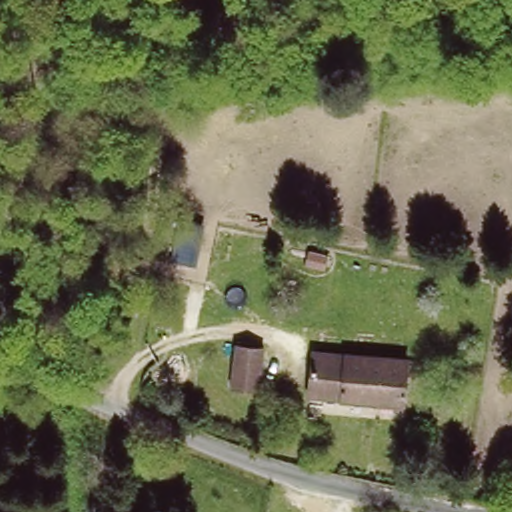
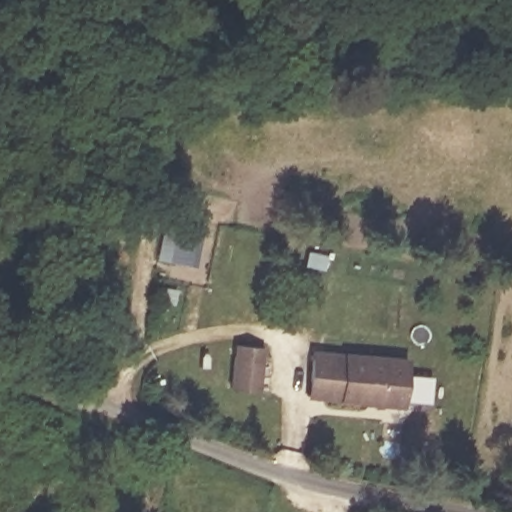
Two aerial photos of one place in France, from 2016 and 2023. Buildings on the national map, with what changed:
unchanged [(227,392),(241,343),(244,332),(272,339),(270,351),(257,400),(227,392)]
unchanged [(308,363),(323,366),(326,352),(413,367),(406,408),(319,393),(320,386),(305,384),(308,363)]

